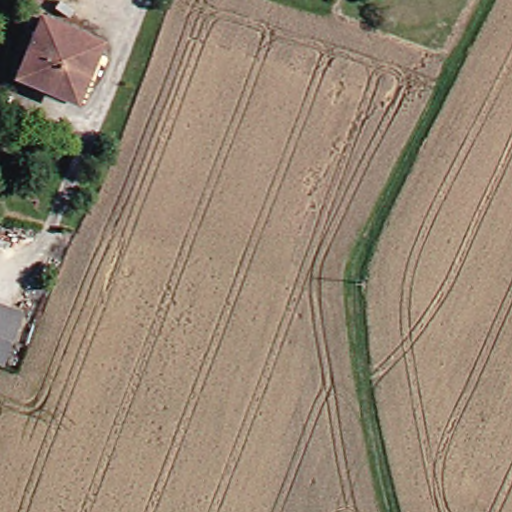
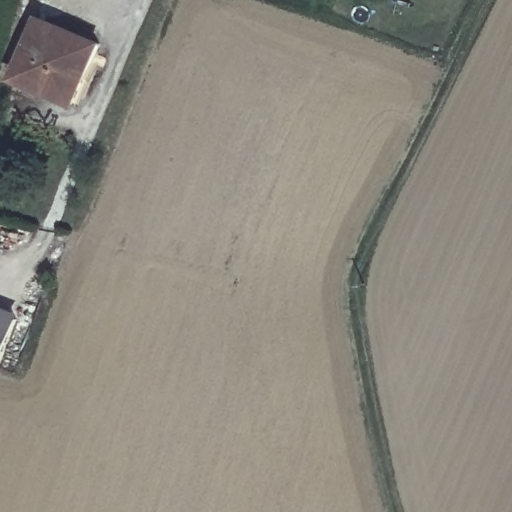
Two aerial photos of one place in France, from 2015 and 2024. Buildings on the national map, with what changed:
unchanged [(54,93),(22,81),(47,19),(107,42),(86,97),(83,104),(54,93)]
unchanged [(30,315),(7,368),(0,365),(0,302),(30,315)]

